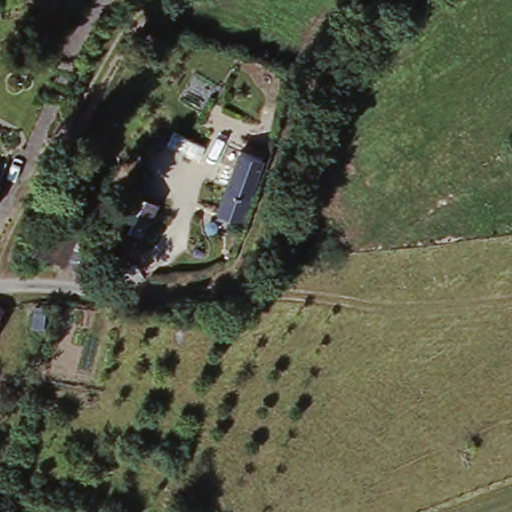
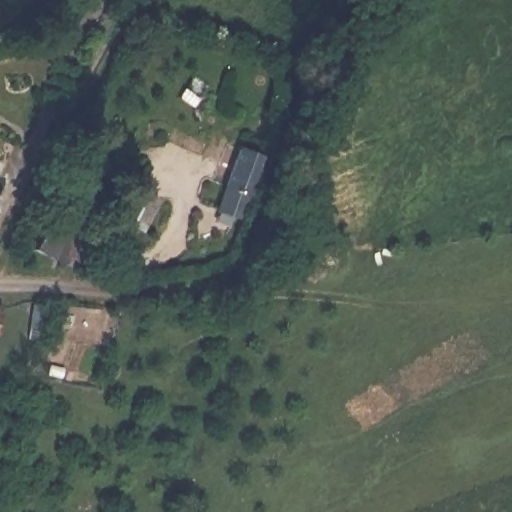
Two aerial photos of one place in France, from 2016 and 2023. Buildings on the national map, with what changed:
unchanged [(238,148),(264,157),(253,191),(249,190),(241,215),(218,208),(227,182),(238,148)]
unchanged [(150,195),(180,211),(156,245),(129,229),(150,195)]
unchanged [(33,248),(51,213),(81,228),(63,262),(33,248)]

